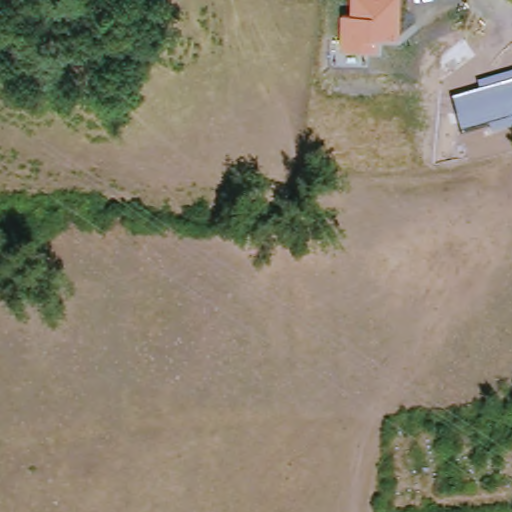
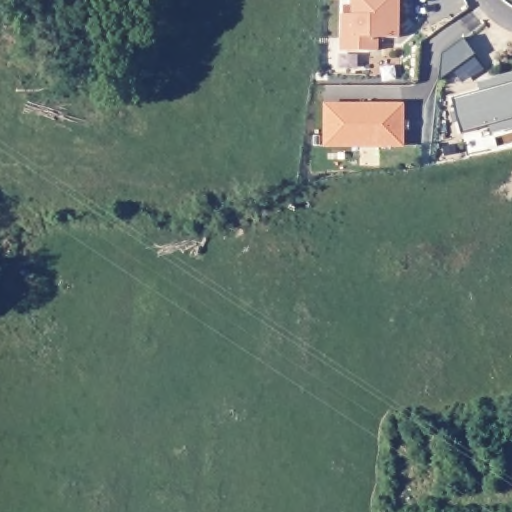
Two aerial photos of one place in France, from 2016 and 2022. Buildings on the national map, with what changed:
unchanged [(398,39),(376,37),(376,53),(339,51),(340,16),(348,15),(349,0),(399,0),(398,39)]
new [(441,55),(463,37),(476,54),(439,81),(441,55)]
unchanged [(476,84),(512,74),(512,130),(491,135),(489,126),(461,132),(452,100),(480,93),(476,84)]
new [(325,105),(397,105),(403,105),(403,146),(325,145),(325,105)]

